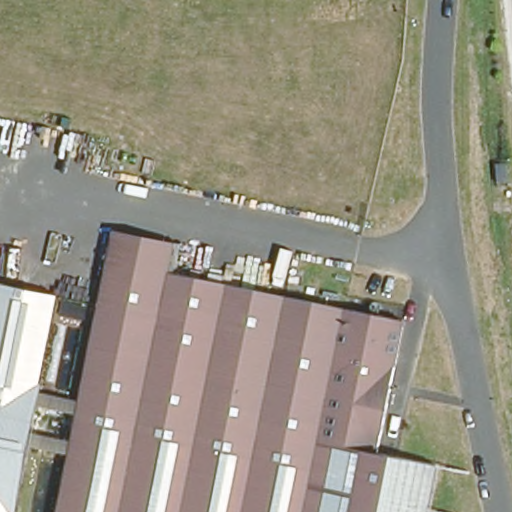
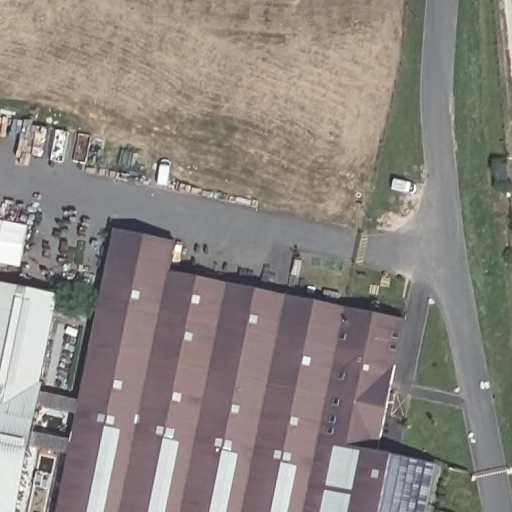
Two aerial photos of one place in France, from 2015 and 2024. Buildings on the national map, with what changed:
new [(20,267),(0,263),(0,222),(28,227),(20,267)]
unchanged [(430,512),(59,512),(118,231),(179,243),(174,272),(409,319),(382,453),(440,465),(430,512)]
unchanged [(15,512),(0,512),(0,284),(59,295),(15,512)]

